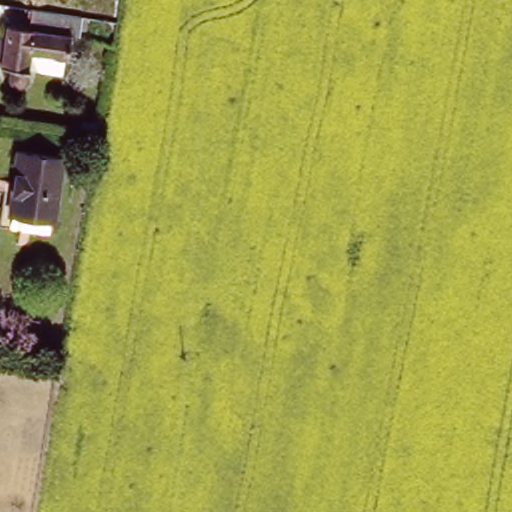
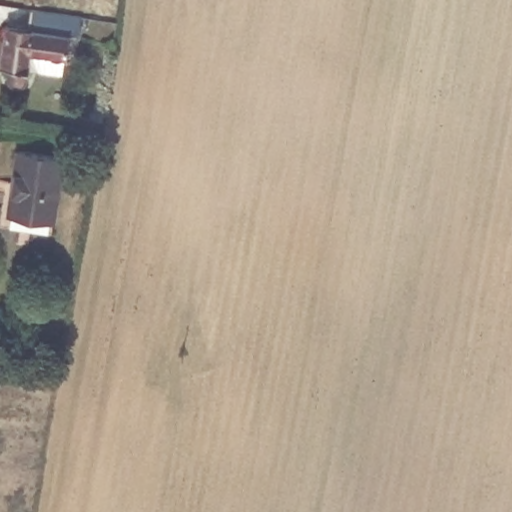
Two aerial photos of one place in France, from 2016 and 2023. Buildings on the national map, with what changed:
unchanged [(77,30),(69,30),(67,52),(30,47),(29,62),(25,62),(25,66),(25,70),(22,73),(19,75),(14,74),(10,72),(9,70),(9,65),(10,62),(0,61),(0,41),(5,14),(25,16),(28,0),(31,0),(80,8),(77,30)]
unchanged [(58,141),(47,219),(42,218),(40,232),(0,227),(2,214),(0,213),(0,197),(2,197),(14,135),(58,141)]

